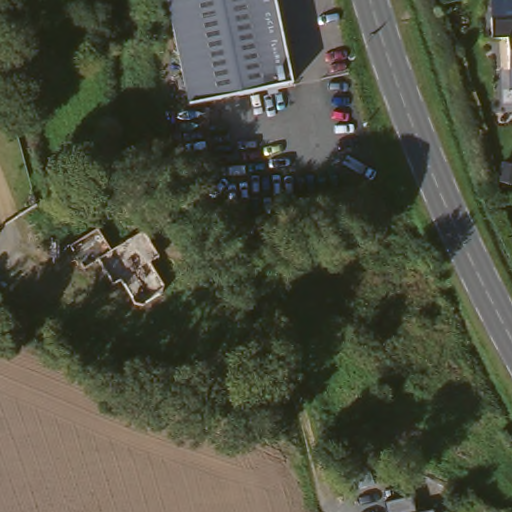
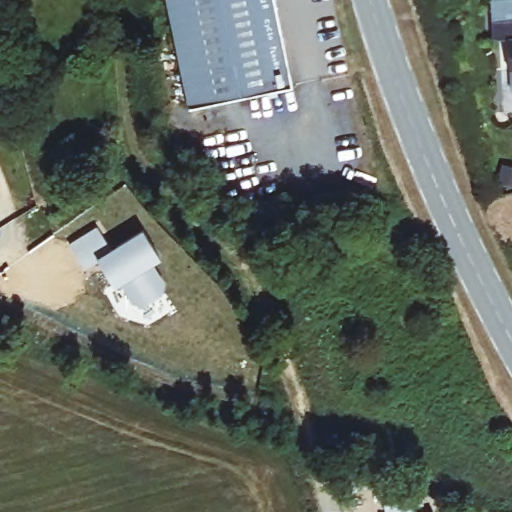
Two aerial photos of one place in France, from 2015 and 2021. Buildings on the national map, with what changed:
unchanged [(188,106),(166,0),(275,0),(292,87),(188,106)]
unchanged [(506,41),(486,38),(486,18),(512,19),(512,73),(507,73),(506,41)]
new [(106,229),(118,251),(151,233),(166,260),(156,265),(169,288),(166,297),(147,307),(139,305),(126,282),(119,286),(104,260),(90,268),(76,245),(106,229)]
unchanged [(413,496),(417,512),(387,512),(385,503),(413,496)]
unchanged [(434,512),(426,512),(433,511),(434,512)]

